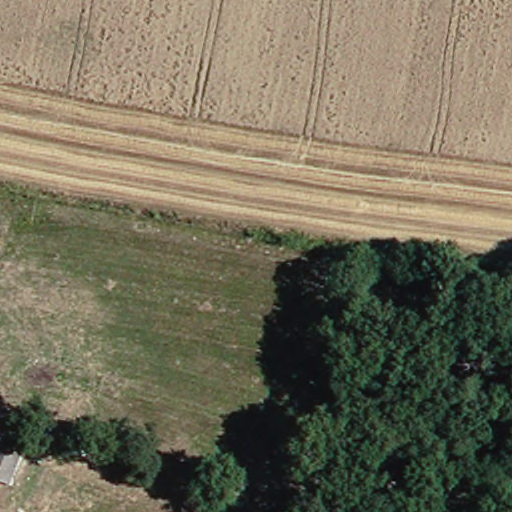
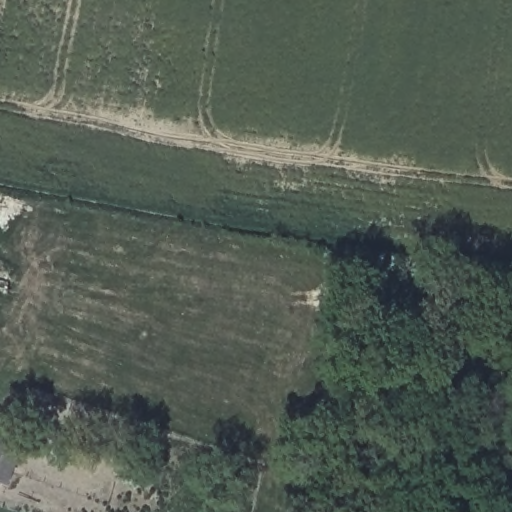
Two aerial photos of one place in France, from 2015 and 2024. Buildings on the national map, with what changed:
unchanged [(0,480),(0,450),(16,453),(11,483),(0,480)]

